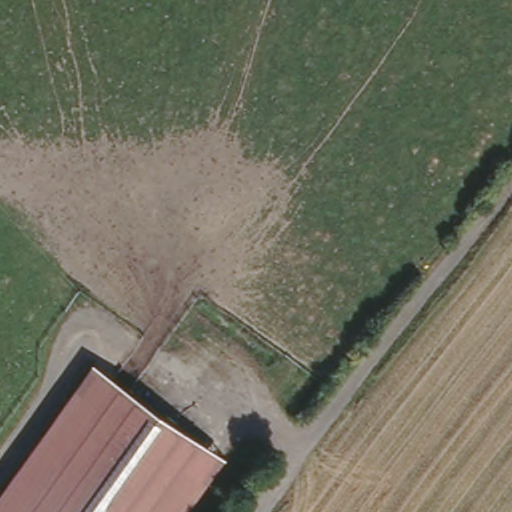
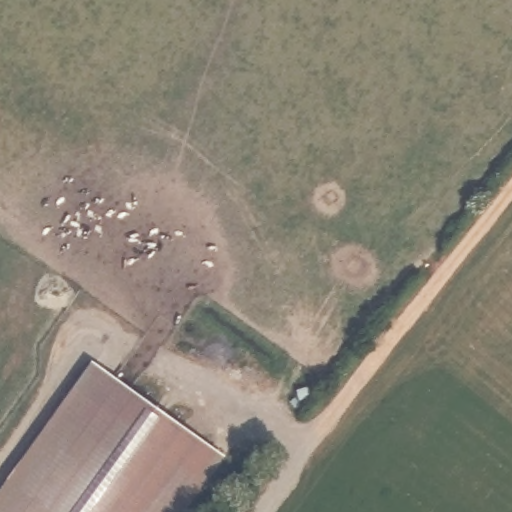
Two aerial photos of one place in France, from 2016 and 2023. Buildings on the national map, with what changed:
unchanged [(191,512),(0,512),(0,495),(95,363),(230,459),(191,512)]

